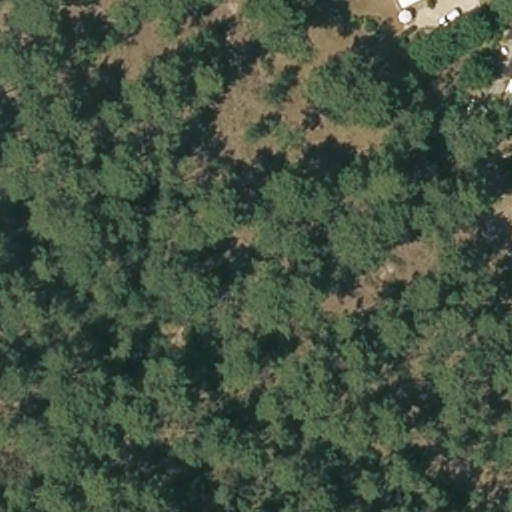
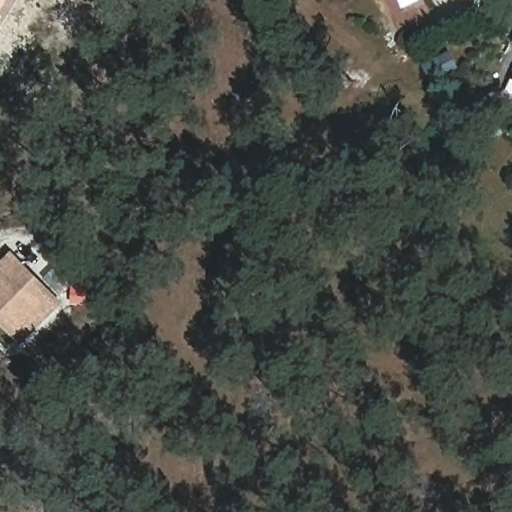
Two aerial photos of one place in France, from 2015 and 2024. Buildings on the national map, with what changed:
new [(10,0),(0,15),(0,0),(10,0)]
unchanged [(512,38),(512,39),(511,39),(512,38)]
unchanged [(512,69),(512,80),(508,79),(512,69)]
new [(13,252),(64,303),(21,347),(0,325),(0,265),(13,252)]

